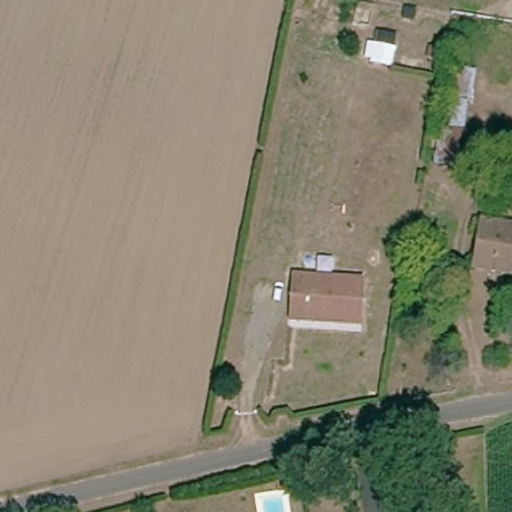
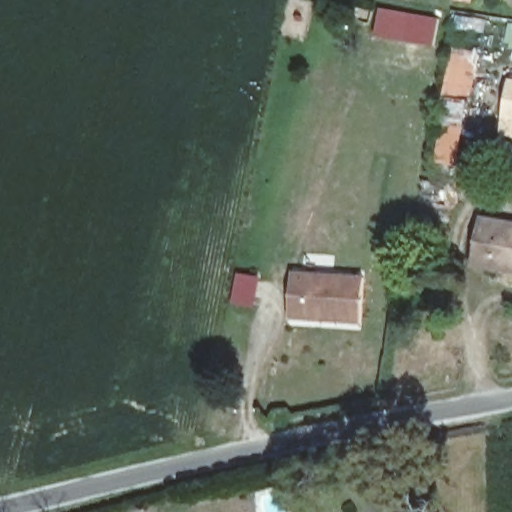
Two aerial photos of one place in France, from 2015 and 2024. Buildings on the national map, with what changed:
new [(439,17),(435,44),(377,35),(381,7),(439,17)]
unchanged [(479,68),(456,167),(432,162),(448,62),(479,68)]
new [(512,137),(500,134),(509,79),(512,79),(512,137)]
unchanged [(481,220),(512,225),(512,267),(476,262),(481,220)]
unchanged [(288,318),(290,271),(362,276),(360,320),(288,318)]

